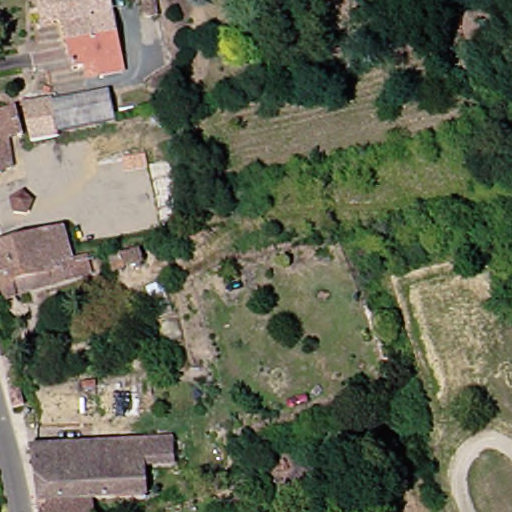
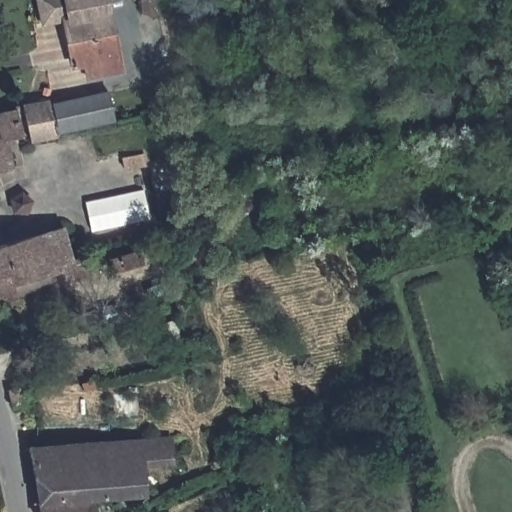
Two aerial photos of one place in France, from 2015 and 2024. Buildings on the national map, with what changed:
unchanged [(60,61),(56,44),(49,13),(30,18),(27,0),(96,0),(110,65),(87,70),(74,73),(71,59),(60,61)]
unchanged [(95,90),(99,107),(96,108),(100,120),(50,133),(21,140),(13,108),(12,104),(40,98),(42,102),(95,90)]
unchanged [(5,109),(8,134),(0,136),(0,110),(5,109)]
unchanged [(119,157),(141,152),(143,163),(122,169),(119,157)]
unchanged [(1,172),(0,172),(0,166),(1,172)]
unchanged [(4,182),(26,195),(23,219),(0,222),(0,188),(4,182)]
new [(89,200),(148,190),(153,220),(94,230),(91,215),(89,200)]
unchanged [(14,294),(0,297),(0,242),(56,228),(63,255),(80,251),(85,270),(47,281),(46,278),(12,286),(14,294)]
unchanged [(127,266),(124,257),(139,253),(141,263),(127,266)]
unchanged [(111,442),(173,435),(175,450),(135,455),(136,463),(115,465),(111,442)]
unchanged [(77,442),(77,445),(111,442),(115,465),(136,463),(140,489),(125,491),(79,495),(37,499),(30,499),(21,446),(77,442)]
unchanged [(79,495),(81,512),(38,512),(37,499),(79,495)]

